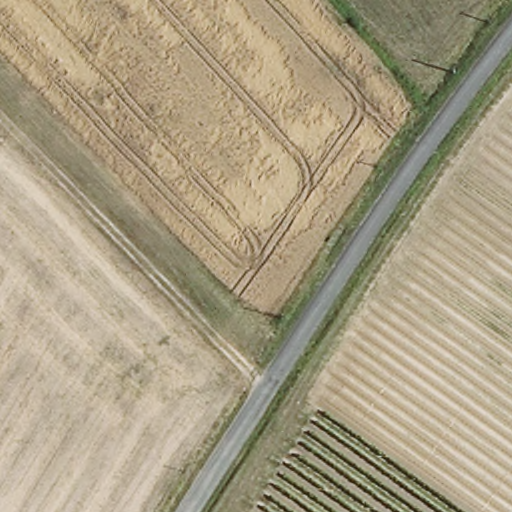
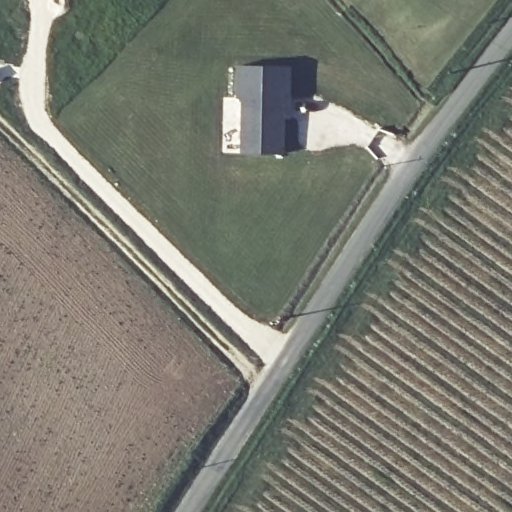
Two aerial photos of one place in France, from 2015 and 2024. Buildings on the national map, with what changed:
new [(234,65),(292,65),(291,117),(287,117),(285,155),(240,155),(240,100),(234,100),(234,65)]

